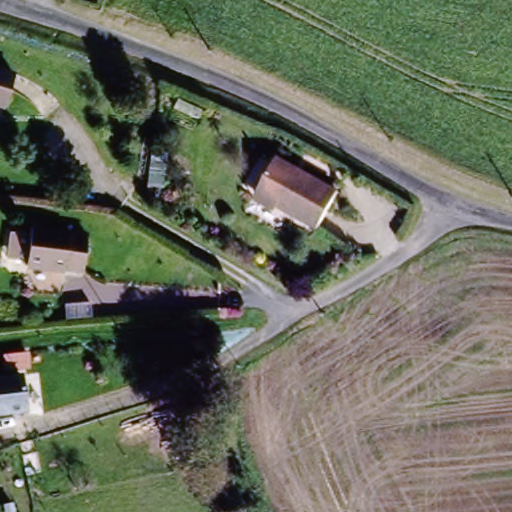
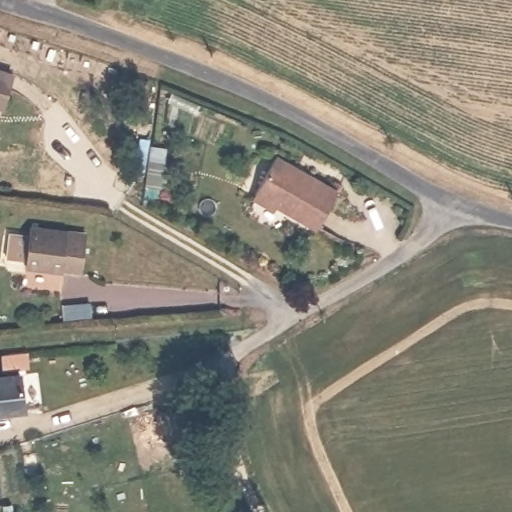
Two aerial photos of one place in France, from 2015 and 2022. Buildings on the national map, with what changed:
unchanged [(0,110),(0,72),(12,75),(2,110),(0,110)]
unchanged [(282,206),(257,191),(278,156),(305,172),(282,206)]
unchanged [(305,172),(339,190),(315,227),(282,206),(305,172)]
unchanged [(82,271),(66,268),(66,272),(26,266),(30,228),(70,232),(86,235),(82,271)]
unchanged [(24,410),(0,412),(0,378),(21,377),(24,410)]

